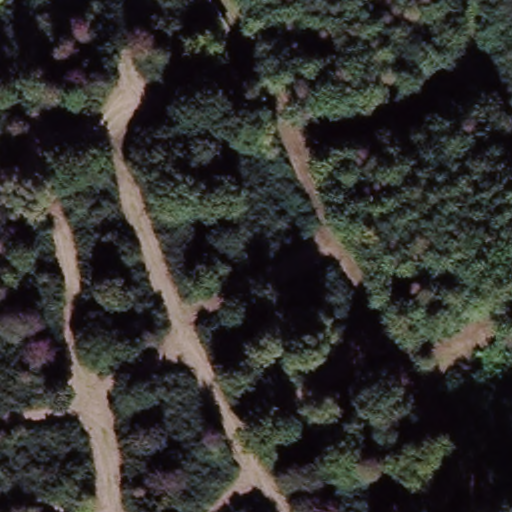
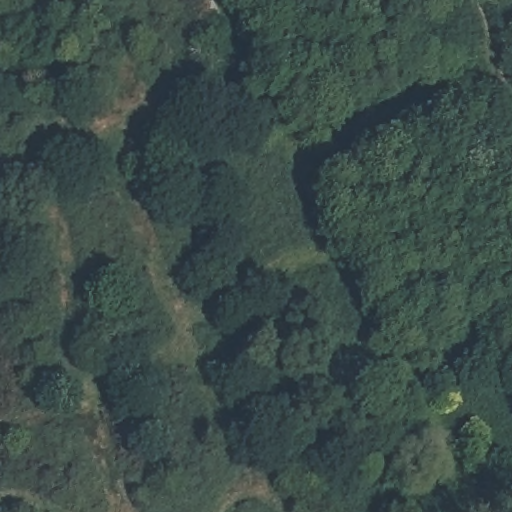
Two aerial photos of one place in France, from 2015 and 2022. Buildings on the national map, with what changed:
unchanged [(232,33),(206,45),(183,7),(194,0),(214,0),(232,33)]

